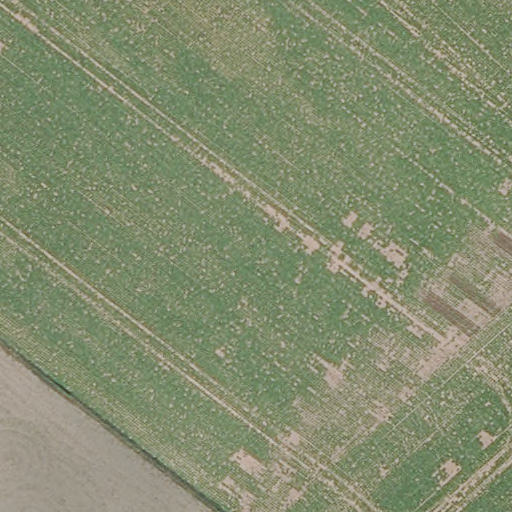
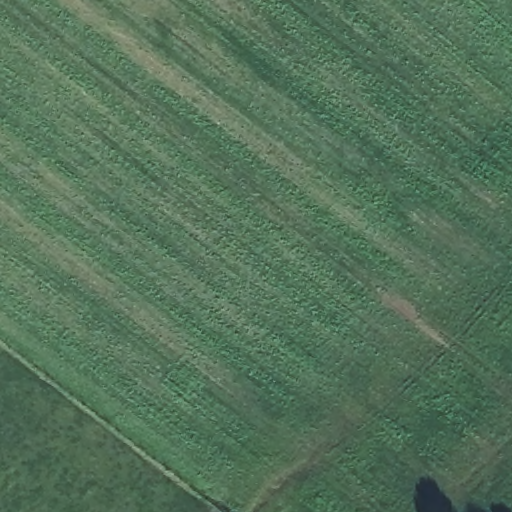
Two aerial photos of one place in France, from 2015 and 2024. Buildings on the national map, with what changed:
[]

